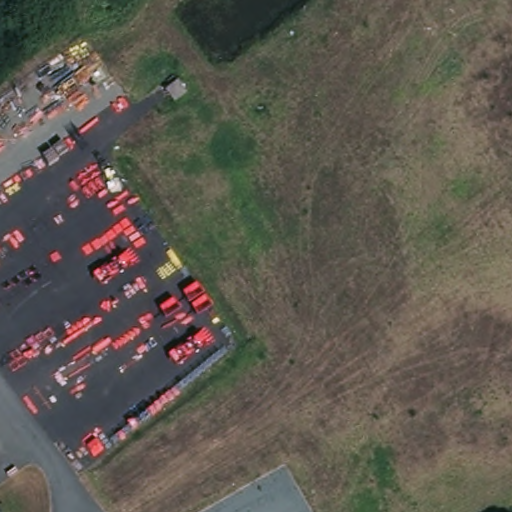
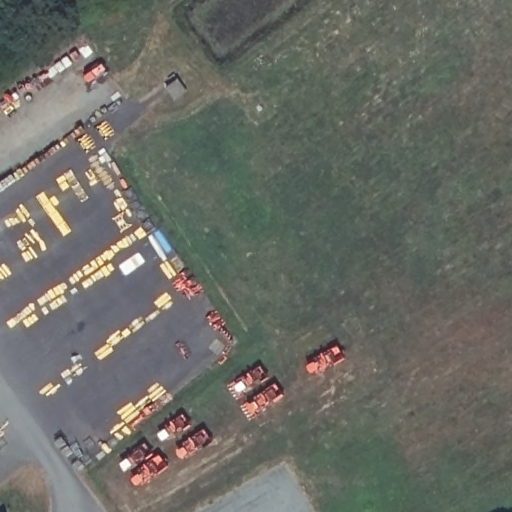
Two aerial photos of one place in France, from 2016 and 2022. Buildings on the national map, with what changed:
unchanged [(1,512),(0,512),(0,510),(1,512)]

